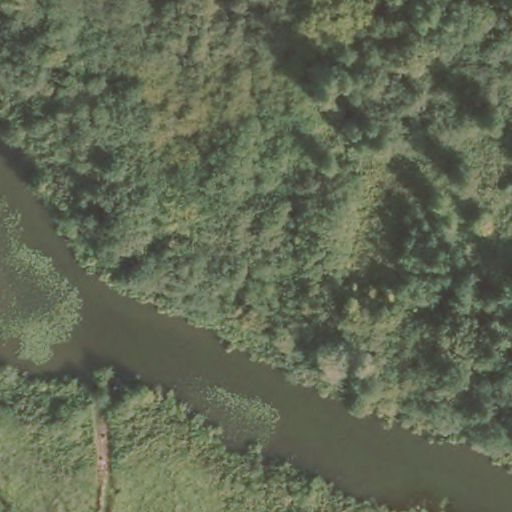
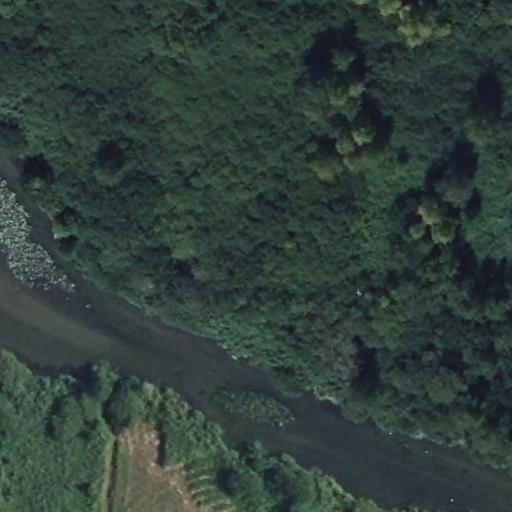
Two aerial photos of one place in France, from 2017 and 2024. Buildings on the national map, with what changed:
[]

